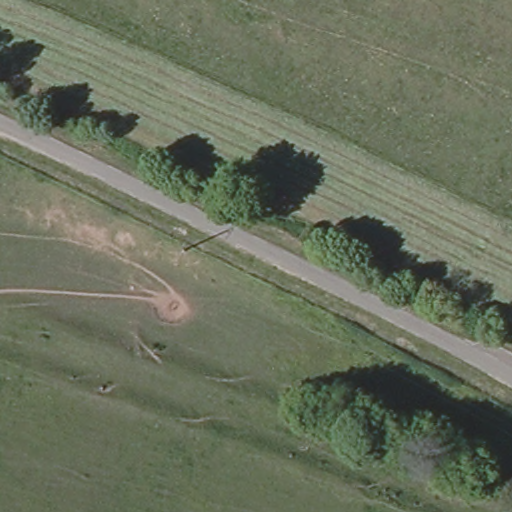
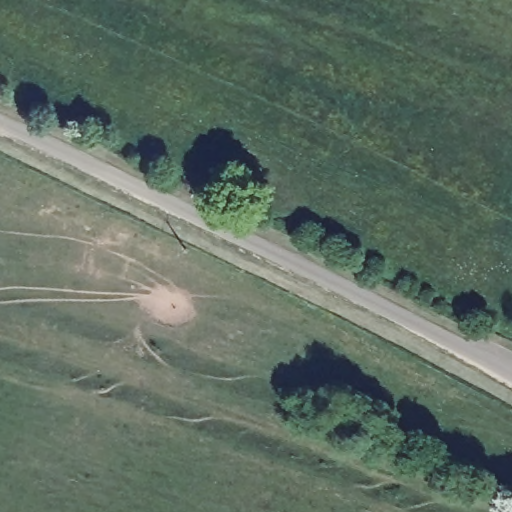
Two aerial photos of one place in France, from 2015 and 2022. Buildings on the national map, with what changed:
[]

